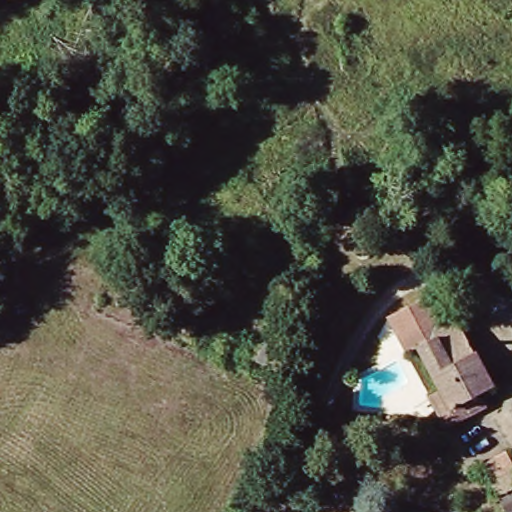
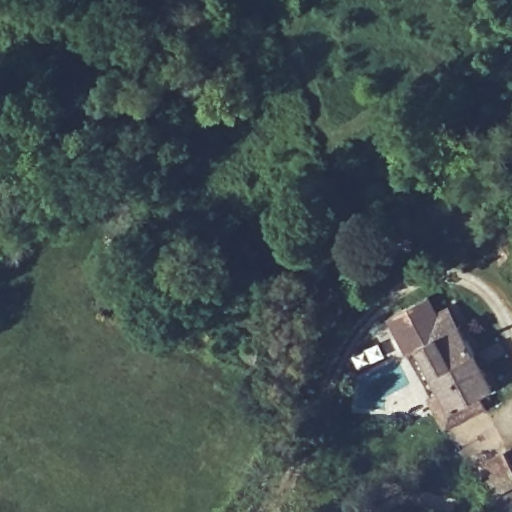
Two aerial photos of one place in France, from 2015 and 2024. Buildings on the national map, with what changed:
unchanged [(426,397),(439,391),(418,349),(408,354),(398,333),(448,308),(482,374),(489,388),(473,397),(478,407),(459,416),(442,425),(426,397)]
unchanged [(477,466),(505,448),(512,461),(512,512),(501,512),(477,466)]

